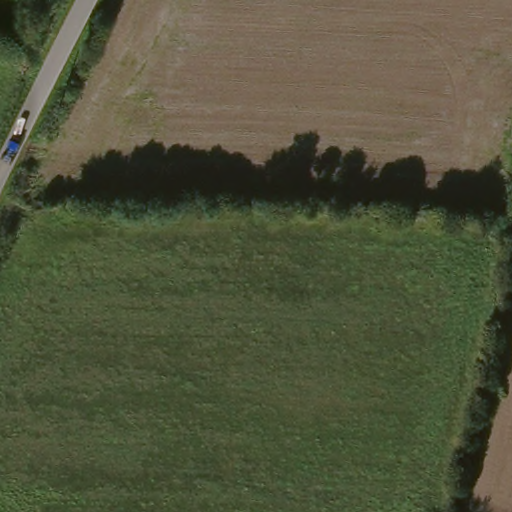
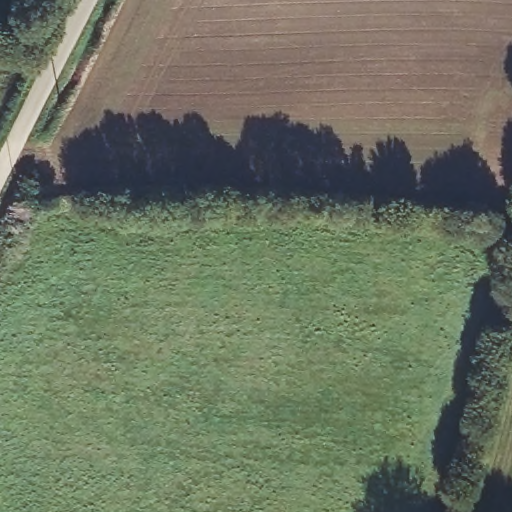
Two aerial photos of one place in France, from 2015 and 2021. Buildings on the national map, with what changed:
[]

